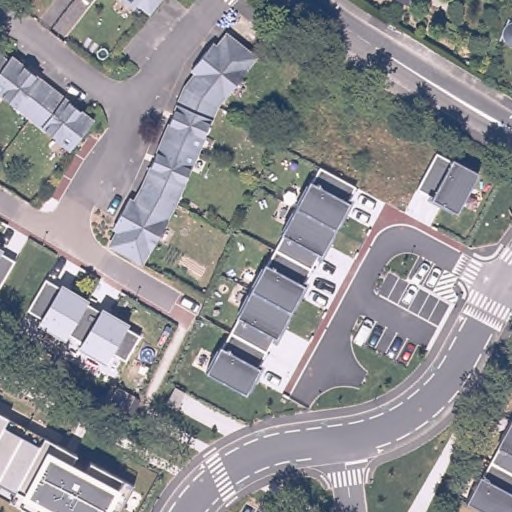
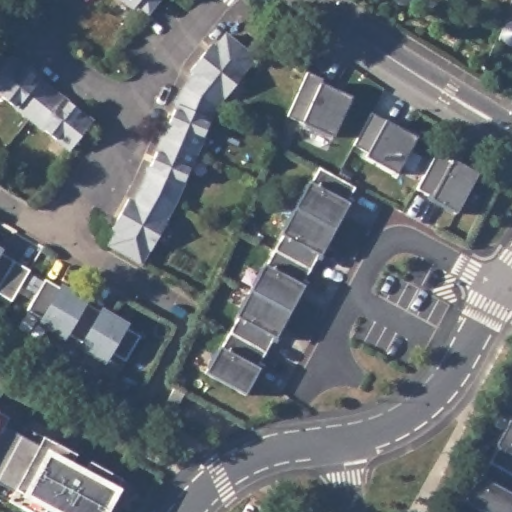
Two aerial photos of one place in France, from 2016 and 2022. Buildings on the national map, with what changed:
unchanged [(145,2),(141,6),(134,0),(165,0),(156,11),(145,2)]
unchanged [(119,212),(130,192),(134,195),(142,180),(182,82),(194,68),(190,65),(204,47),(210,38),(215,41),(225,29),(254,51),(244,64),(245,66),(224,91),(222,90),(214,101),(175,198),(165,215),(167,215),(151,244),(150,243),(141,258),(110,238),(116,226),(112,223),(119,212)]
unchanged [(18,61),(21,58),(103,121),(80,151),(0,87),(0,84),(2,82),(0,80),(0,61),(6,53),(18,61)]
new [(333,138),(302,123),(289,116),(306,77),(320,83),(350,96),(333,138)]
new [(399,169),(368,151),(357,145),(373,114),(386,120),(416,137),(399,169)]
unchanged [(435,153),(451,159),(475,172),(455,212),(430,198),(431,195),(416,188),(435,153)]
unchanged [(310,182),(317,169),(351,188),(346,204),(333,229),(295,208),(310,182)]
unchanged [(275,250),(280,233),(295,208),(333,229),(320,254),(308,270),(275,250)]
unchanged [(1,254),(29,271),(12,300),(0,292),(0,248),(3,250),(1,254)]
unchanged [(263,265),(275,250),(308,270),(303,287),(289,312),(250,290),(263,265)]
unchanged [(58,287),(60,284),(87,299),(85,303),(99,312),(100,308),(128,323),(125,328),(139,337),(125,361),(111,355),(106,365),(75,348),(80,342),(67,335),(64,341),(35,324),(39,319),(26,310),(44,279),(58,287)]
unchanged [(236,316),(250,290),(289,312),(274,337),(262,351),(229,333),(236,316)]
unchanged [(262,351),(257,369),(244,394),(206,372),(219,347),(229,333),(262,351)]
unchanged [(4,426),(36,446),(42,437),(121,480),(119,488),(107,512),(29,512),(7,500),(0,496),(0,414),(7,418),(4,426)]
unchanged [(490,464),(501,449),(496,446),(510,422),(512,423),(512,475),(490,464)]
unchanged [(511,512),(483,512),(465,503),(479,476),(483,479),(490,464),(512,475),(512,510),(511,512)]

